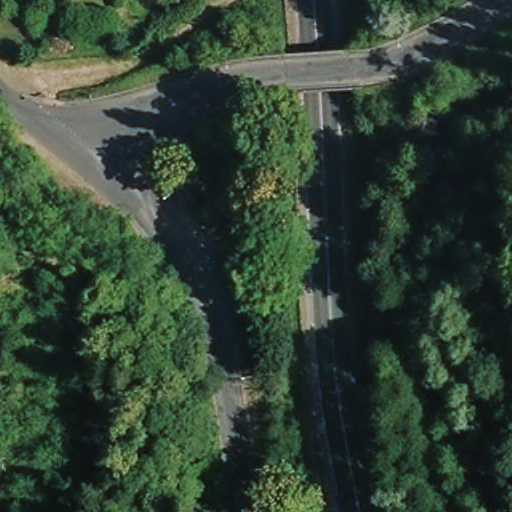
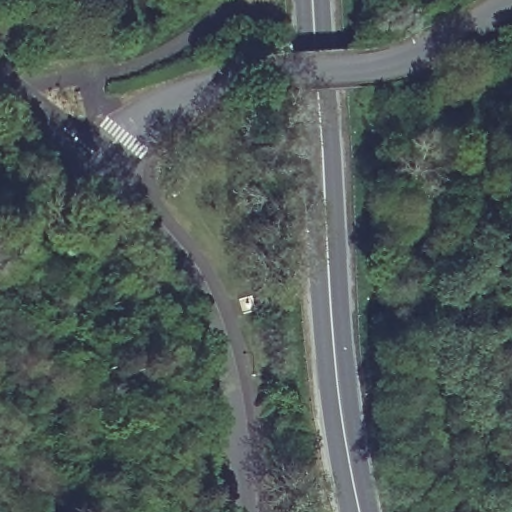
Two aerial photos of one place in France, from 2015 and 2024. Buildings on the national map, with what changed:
unchanged [(43,177),(21,202),(0,184),(0,171),(15,152),(43,177)]

